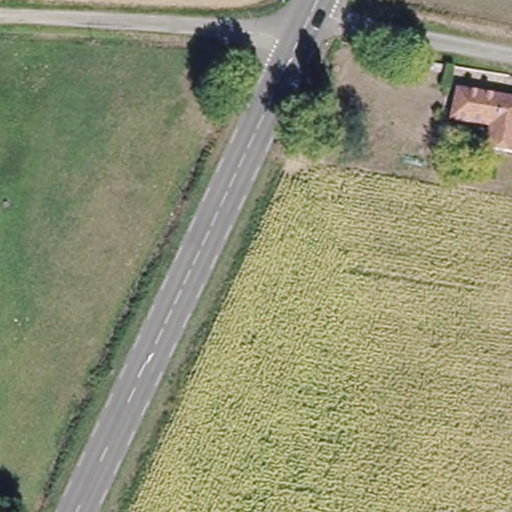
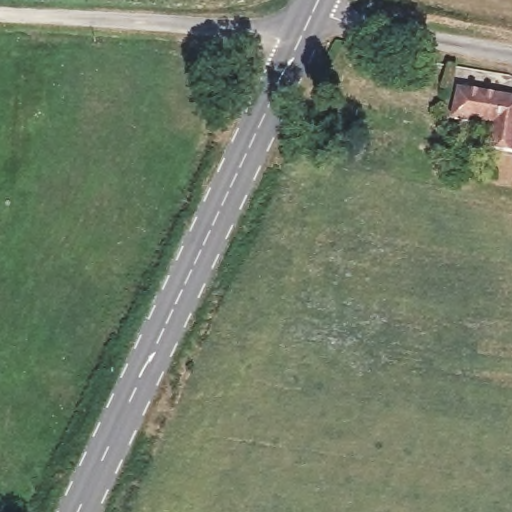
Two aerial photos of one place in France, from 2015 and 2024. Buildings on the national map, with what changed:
unchanged [(508,144),(479,139),(483,117),(443,111),(448,80),(449,80),(512,91),(512,145),(508,144)]

